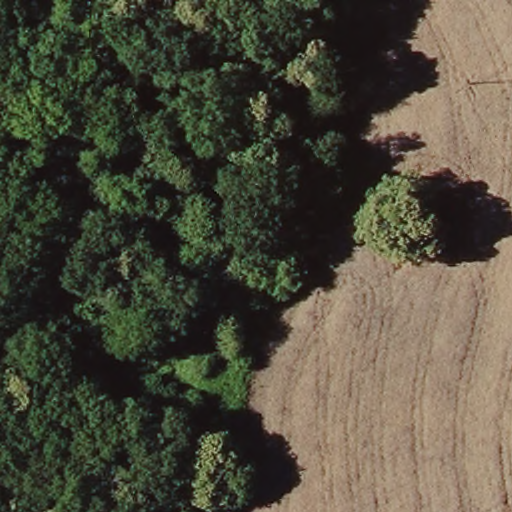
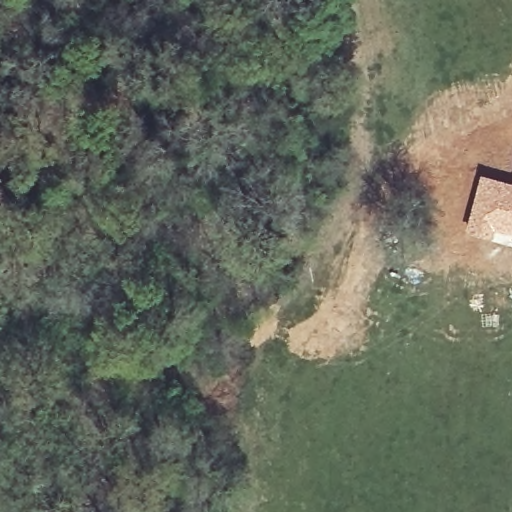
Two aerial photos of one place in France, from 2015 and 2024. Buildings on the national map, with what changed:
new [(480,172),(512,181),(512,247),(464,232),(480,172)]

